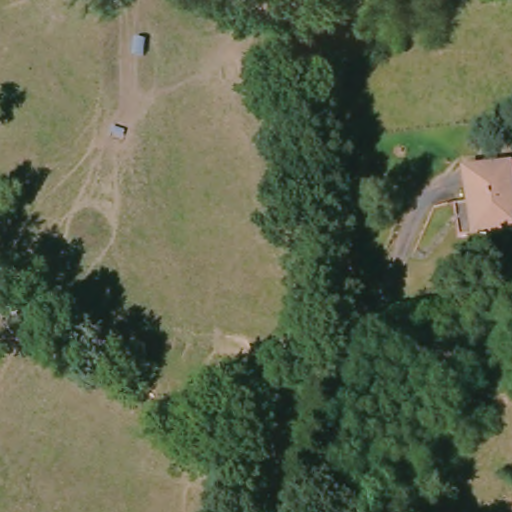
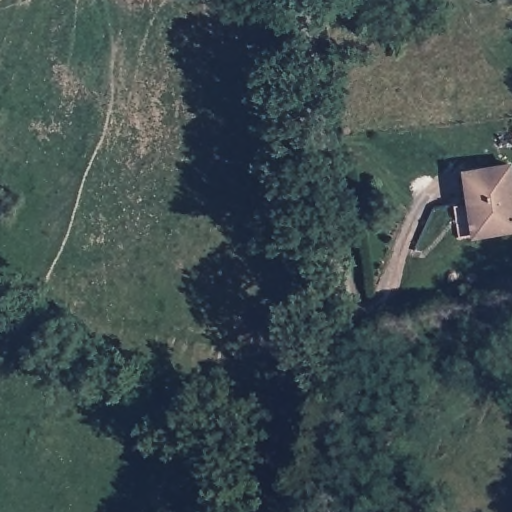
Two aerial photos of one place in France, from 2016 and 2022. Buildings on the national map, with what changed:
unchanged [(452,207),(466,205),(461,170),(512,164),(512,229),(455,237),(452,207)]

